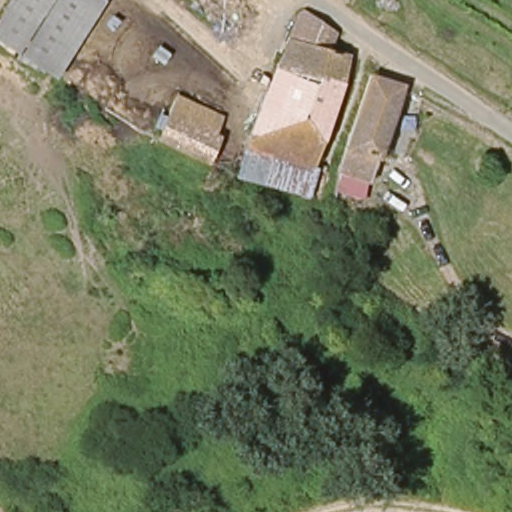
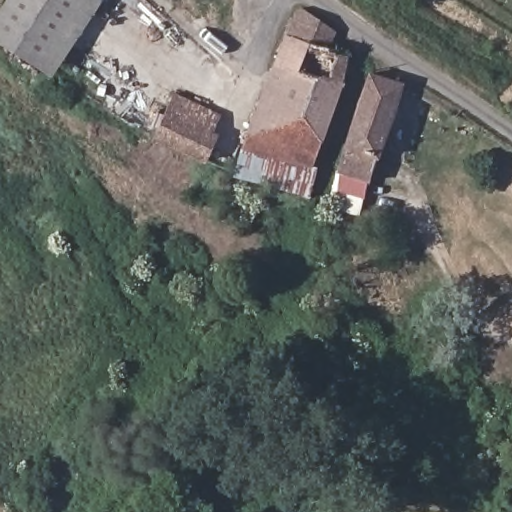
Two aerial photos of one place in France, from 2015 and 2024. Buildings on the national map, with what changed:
unchanged [(94,0),(48,72),(0,41),(0,27),(18,0),(94,0)]
unchanged [(319,70),(342,80),(302,196),(235,172),(297,27),(328,48),(319,70)]
unchanged [(409,73),(366,197),(329,186),(374,58),(409,73)]
unchanged [(156,145),(158,141),(173,100),(222,118),(209,156),(207,162),(156,145)]

